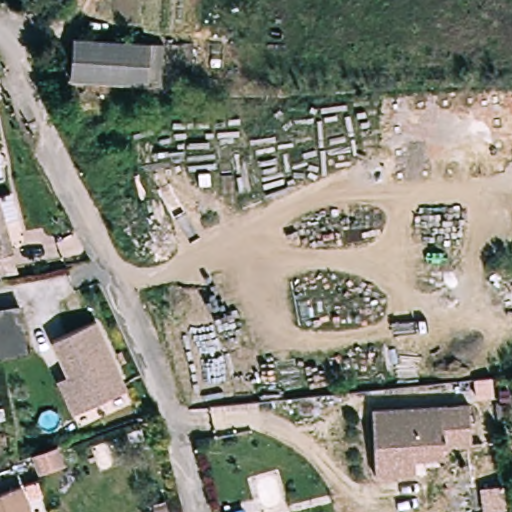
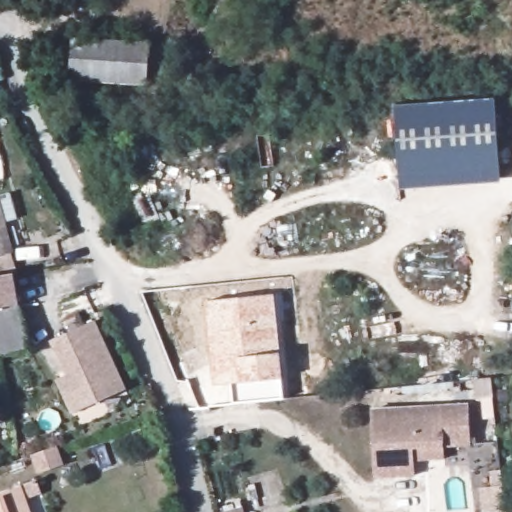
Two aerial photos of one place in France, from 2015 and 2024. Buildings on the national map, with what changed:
unchanged [(76,40),(164,36),(166,77),(77,79),(76,40)]
new [(506,100),(509,170),(408,174),(403,105),(506,100)]
new [(509,170),(510,184),(410,189),(408,174),(509,170)]
unchanged [(17,251),(2,255),(8,276),(0,277),(0,196),(2,195),(17,251)]
new [(280,354),(282,378),(284,398),(233,402),(232,384),(213,386),(205,301),(275,293),(280,354)]
unchanged [(17,304),(25,346),(0,351),(0,307),(17,304)]
unchanged [(56,386),(73,378),(57,346),(97,325),(132,391),(91,412),(75,422),(56,386)]
unchanged [(370,475),(369,462),(368,407),(466,404),(466,444),(439,445),(439,460),(409,459),(409,474),(370,475)]
unchanged [(62,449),(68,468),(47,475),(40,457),(62,449)]
unchanged [(23,486),(31,512),(0,512),(0,493),(23,486)]

